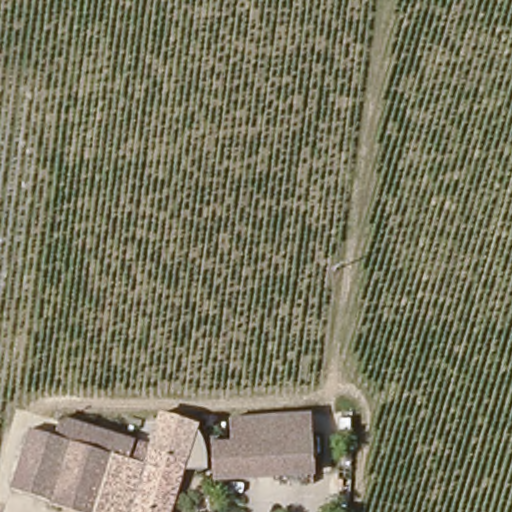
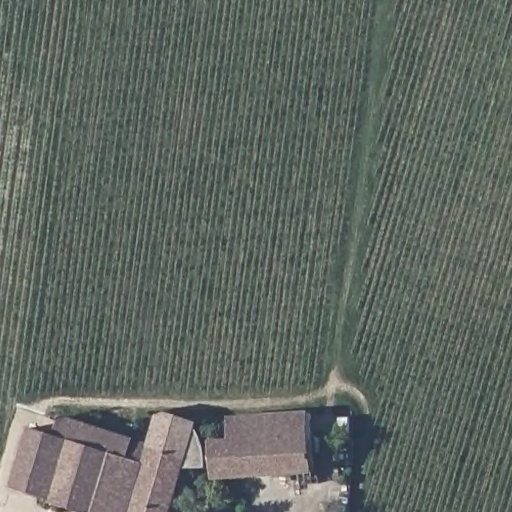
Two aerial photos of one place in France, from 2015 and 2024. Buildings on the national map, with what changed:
unchanged [(160,412),(199,425),(188,454),(151,443),(160,412)]
unchanged [(315,475),(214,482),(211,446),(232,444),(230,422),(312,414),(315,475)]
unchanged [(151,443),(144,465),(66,443),(69,431),(73,420),(101,429),(151,443)]
unchanged [(8,489),(27,430),(48,437),(29,495),(8,489)]
unchanged [(48,437),(66,443),(144,465),(151,443),(188,454),(169,512),(84,512),(29,495),(48,437)]

